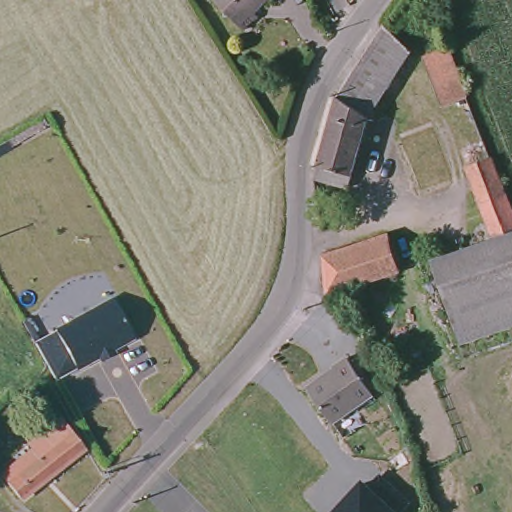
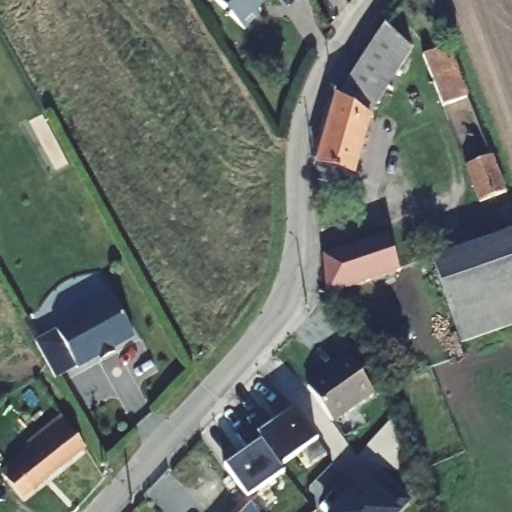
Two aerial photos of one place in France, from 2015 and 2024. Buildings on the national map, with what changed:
unchanged [(257,15),(242,30),(213,0),(259,0),(251,9),(257,15)]
unchanged [(373,36),(400,58),(361,117),(343,176),(309,164),(328,104),(373,36)]
unchanged [(464,104),(442,111),(423,61),(444,53),(464,104)]
unchanged [(474,239),(489,234),(465,171),(491,161),(512,218),(512,236),(477,247),(474,239)]
unchanged [(477,247),(512,236),(512,329),(461,346),(431,262),(477,247)]
unchanged [(386,237),(396,274),(368,283),(327,297),(321,256),(386,237)]
unchanged [(103,372),(101,367),(58,382),(43,350),(117,310),(138,350),(116,360),(118,365),(103,372)]
unchanged [(381,391),(338,420),(314,384),(342,365),(342,364),(356,354),(381,391)]
new [(317,442),(280,468),(282,475),(247,498),(226,467),(261,443),(257,437),(292,412),(317,442)]
unchanged [(85,447),(22,497),(0,467),(0,466),(10,458),(13,462),(36,445),(33,441),(63,418),(85,447)]
unchanged [(362,477),(400,510),(398,512),(332,512),(362,477)]
new [(253,512),(244,512),(249,506),(253,512)]

